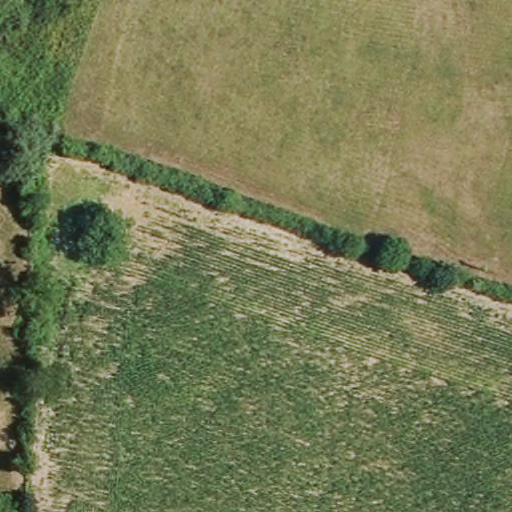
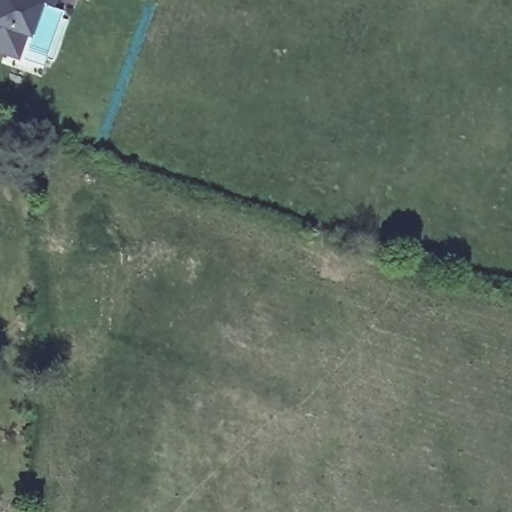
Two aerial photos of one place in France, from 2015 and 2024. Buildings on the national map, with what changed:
new [(57,7),(42,2),(32,34),(21,30),(13,54),(0,49),(0,0),(59,0),(57,7)]

